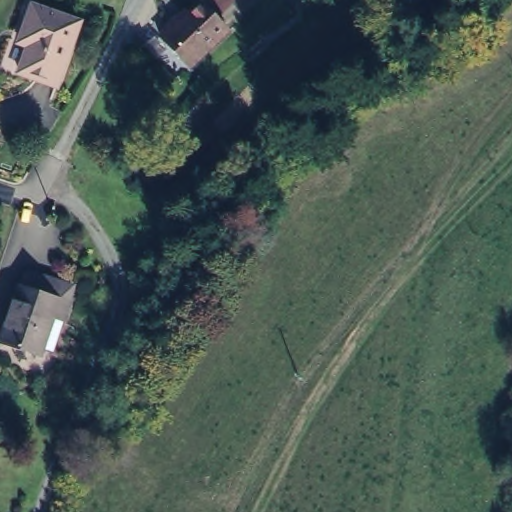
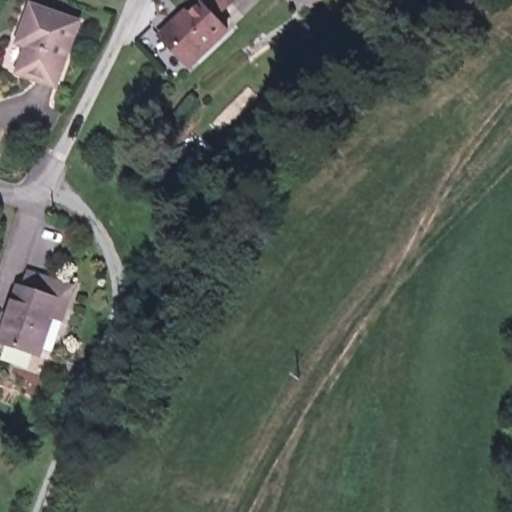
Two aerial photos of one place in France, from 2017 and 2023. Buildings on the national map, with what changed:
unchanged [(76,19),(56,86),(18,74),(28,48),(17,44),(21,33),(32,4),(76,19)]
unchanged [(175,66),(157,47),(174,30),(183,21),(189,26),(200,15),(224,41),(190,73),(185,78),(175,66)]
unchanged [(47,324),(35,323),(27,358),(0,351),(0,312),(3,297),(7,298),(13,279),(55,288),(47,324)]

